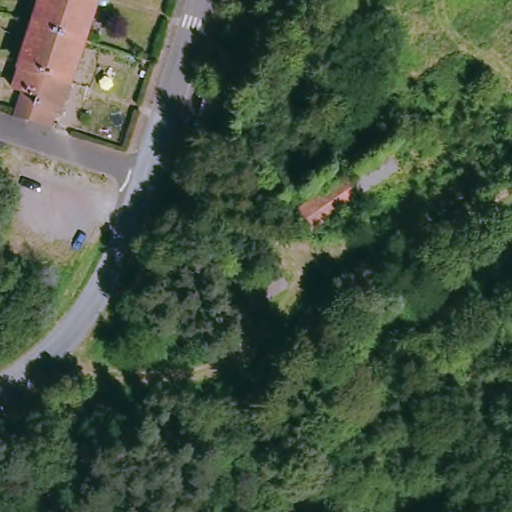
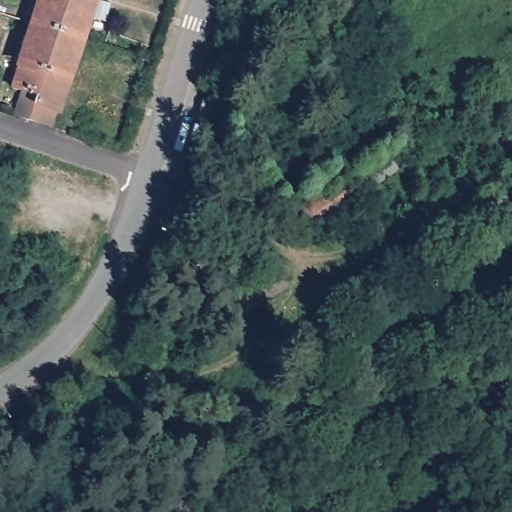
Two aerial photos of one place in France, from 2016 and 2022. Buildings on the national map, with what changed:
unchanged [(65,31),(41,23),(48,0),(75,0),(65,31)]
unchanged [(89,39),(65,31),(75,0),(102,0),(89,39)]
unchanged [(246,14),(235,50),(216,45),(226,7),(246,14)]
unchanged [(35,122),(21,118),(29,95),(19,92),(41,23),(65,31),(35,122)]
unchanged [(89,39),(75,82),(69,80),(66,91),(60,89),(55,104),(61,106),(53,129),(35,122),(65,31),(89,39)]
unchanged [(233,109),(229,120),(198,110),(201,99),(233,109)]
unchanged [(396,171),(300,237),(280,206),(299,193),(305,201),(383,152),(396,171)]
unchanged [(0,177),(0,154),(6,156),(0,177)]
unchanged [(409,175),(426,204),(413,213),(404,201),(364,228),(352,211),(404,178),(409,175)]
unchanged [(291,272),(254,304),(261,312),(241,329),(224,309),(281,261),(291,272)]

